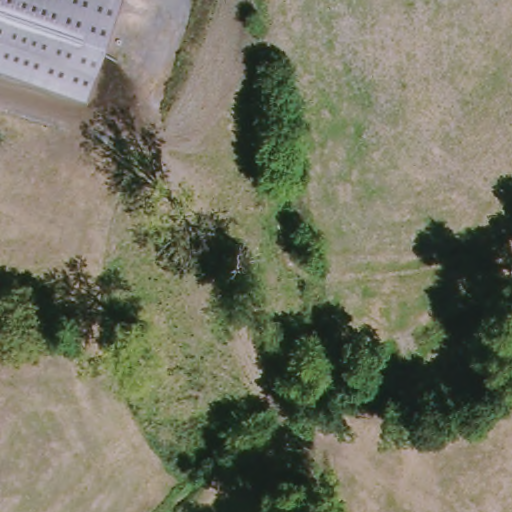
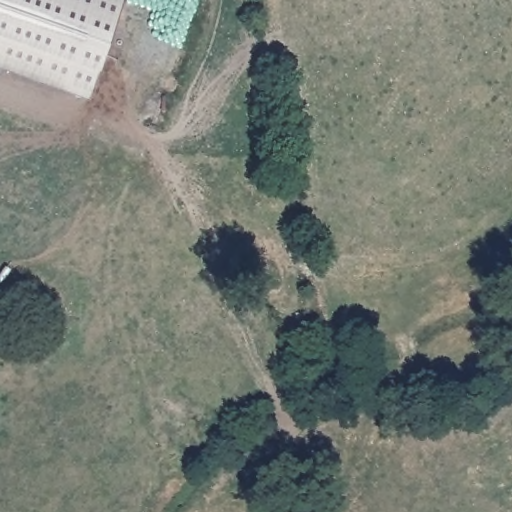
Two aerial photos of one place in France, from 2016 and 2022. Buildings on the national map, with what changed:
unchanged [(0,66),(0,0),(119,0),(87,97),(0,66)]

